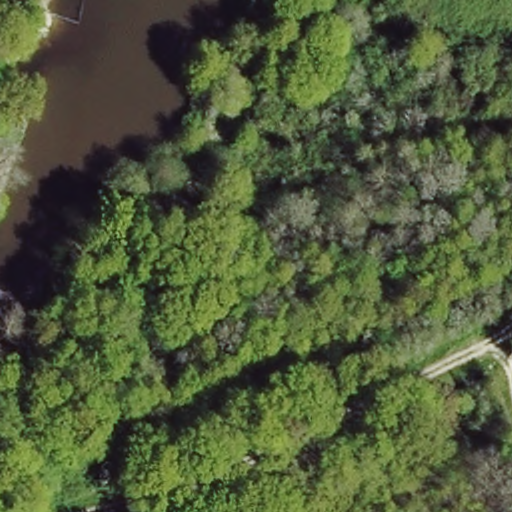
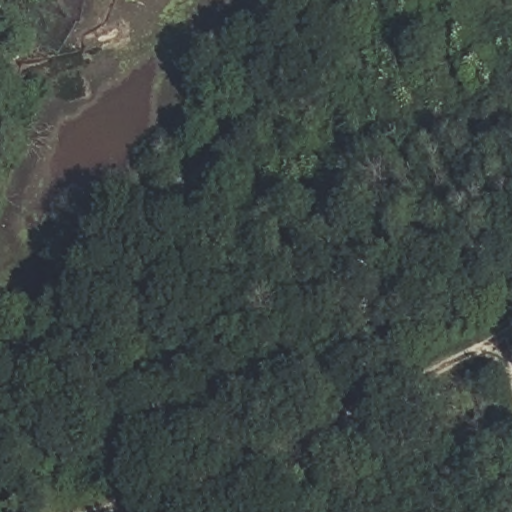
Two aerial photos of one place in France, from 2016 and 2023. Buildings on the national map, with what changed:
[]

